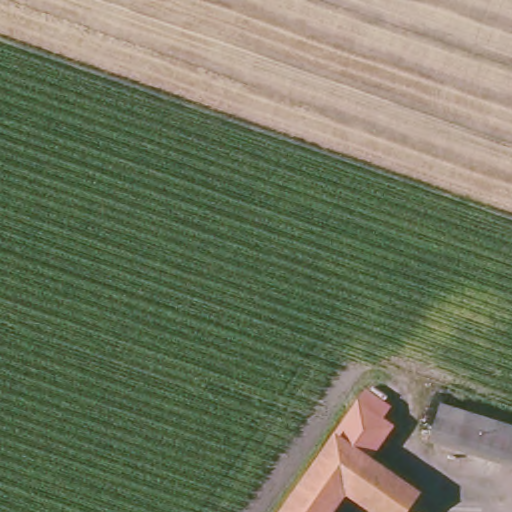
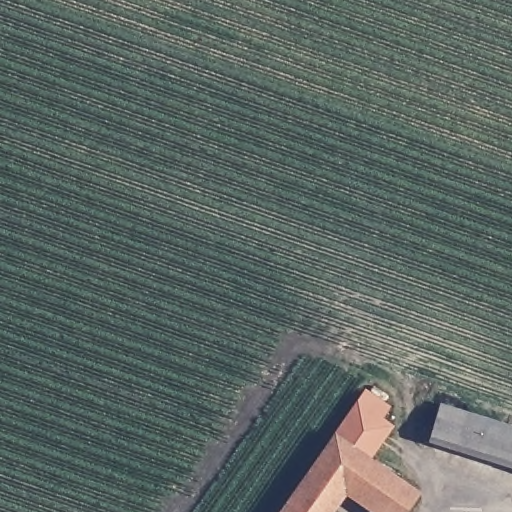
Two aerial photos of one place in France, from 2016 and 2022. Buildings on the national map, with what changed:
unchanged [(390,410),(382,421),(393,428),(370,461),(337,437),(367,395),(390,410)]
unchanged [(490,420),(480,452),(432,436),(442,405),(490,420)]
unchanged [(512,462),(480,452),(490,420),(512,427),(512,462)]
unchanged [(337,437),(370,461),(416,494),(403,512),(377,512),(348,492),(334,512),(283,512),(337,437)]

